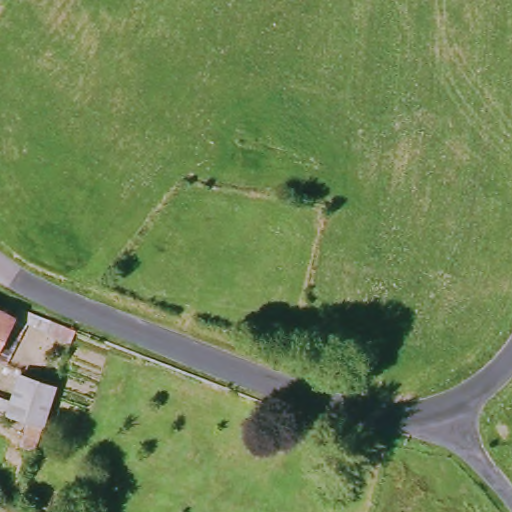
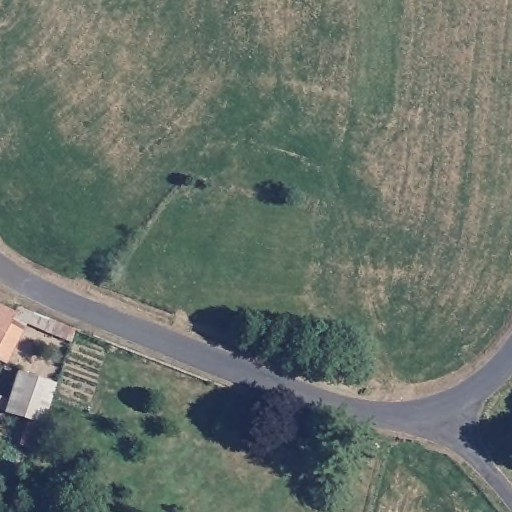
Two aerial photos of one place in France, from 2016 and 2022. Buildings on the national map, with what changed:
unchanged [(0,314),(9,318),(0,338),(0,314)]
unchanged [(15,446),(21,425),(0,419),(0,417),(3,411),(0,410),(0,395),(6,397),(14,372),(54,385),(33,451),(15,446)]

